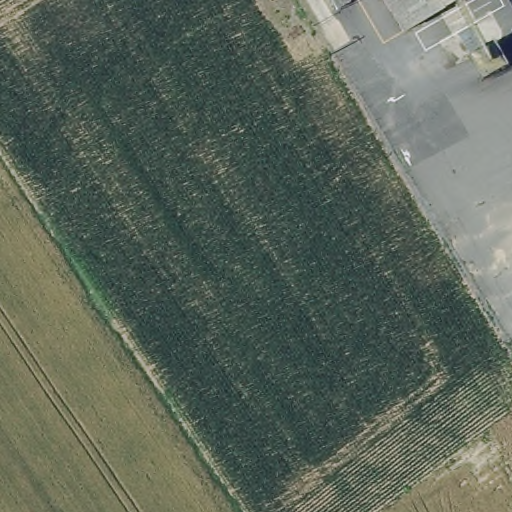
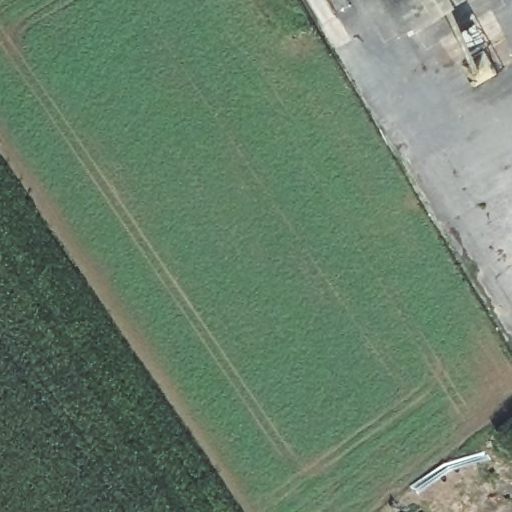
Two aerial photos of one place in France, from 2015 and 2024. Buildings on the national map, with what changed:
unchanged [(344,5),(330,14),(322,0),(341,0),(344,5)]
unchanged [(405,29),(388,0),(456,0),(405,29)]

